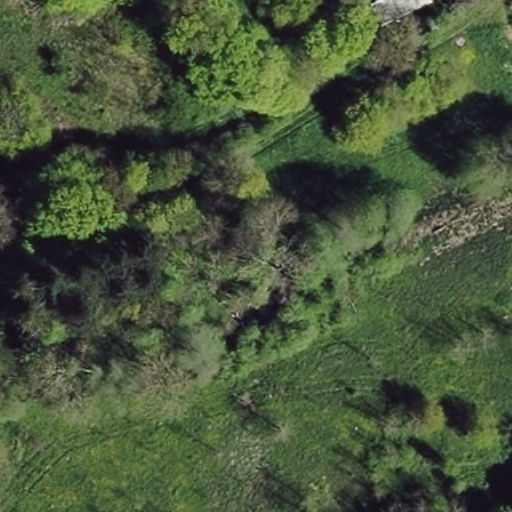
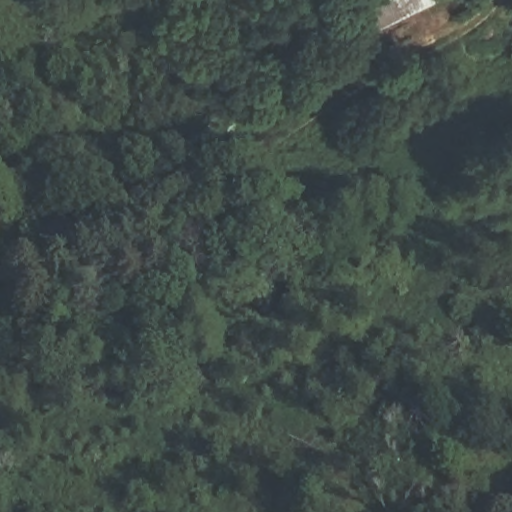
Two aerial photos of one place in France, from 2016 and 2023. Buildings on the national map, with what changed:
unchanged [(375,0),(430,0),(380,20),(375,0)]
unchanged [(37,251),(37,273),(12,273),(12,250),(37,251)]

